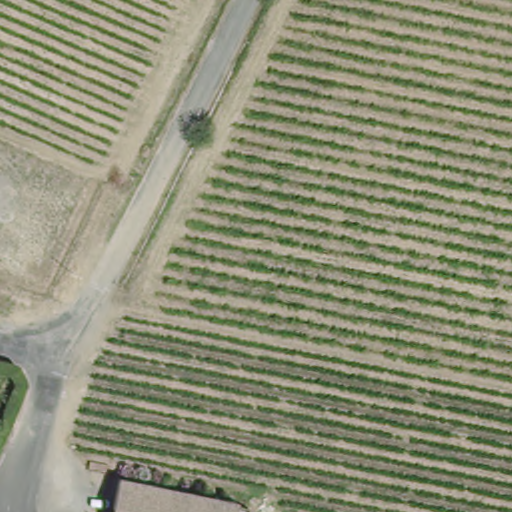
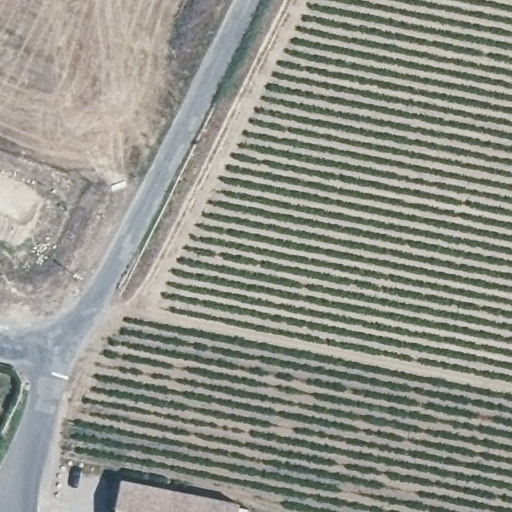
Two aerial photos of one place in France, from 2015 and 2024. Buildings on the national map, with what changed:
unchanged [(238,505),(237,512),(114,512),(120,481),(238,505)]

